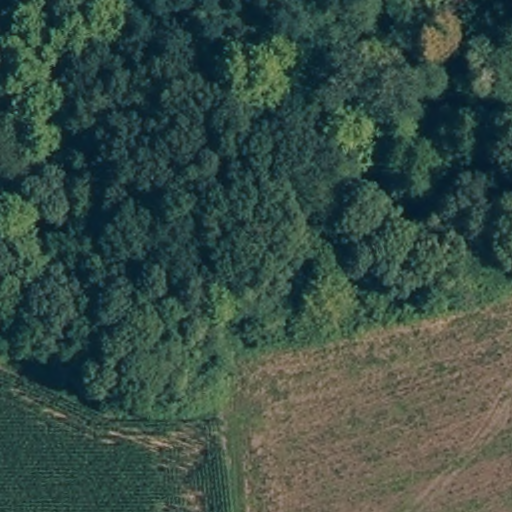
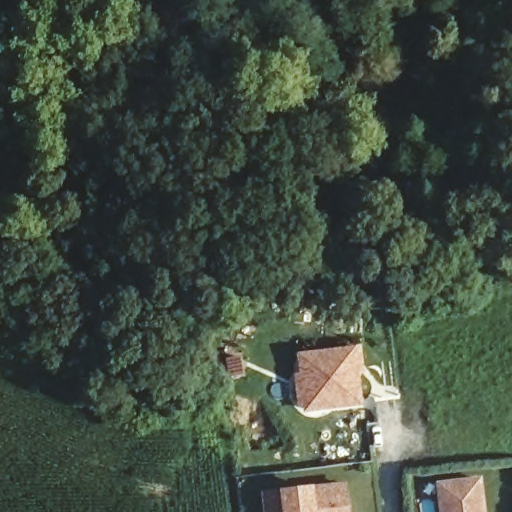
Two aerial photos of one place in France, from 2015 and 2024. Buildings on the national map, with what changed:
new [(295,371),(294,352),(360,344),(364,405),(303,413),(297,404),(293,372),(295,371)]
new [(438,484),(484,478),(487,512),(442,512),(438,484)]
new [(263,493),(282,491),(315,487),(348,484),(351,512),(264,512),(263,493)]

